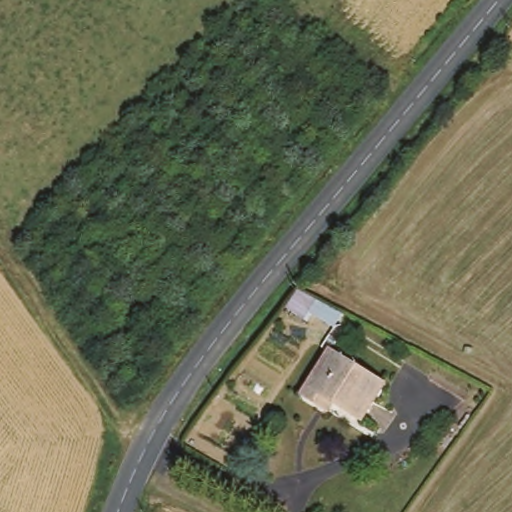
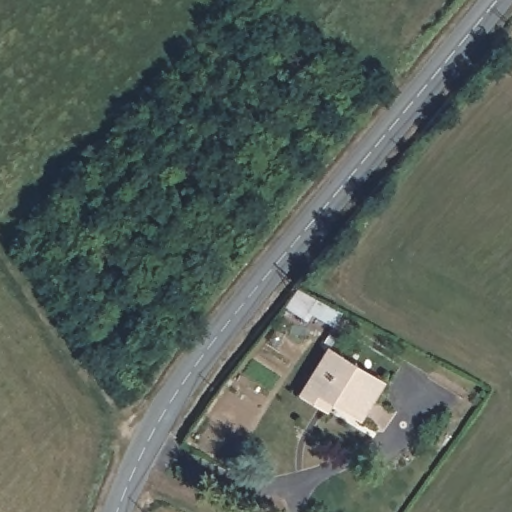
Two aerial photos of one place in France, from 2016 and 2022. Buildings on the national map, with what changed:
unchanged [(326,352),(381,386),(358,421),(322,399),(315,408),(298,397),(326,352)]

